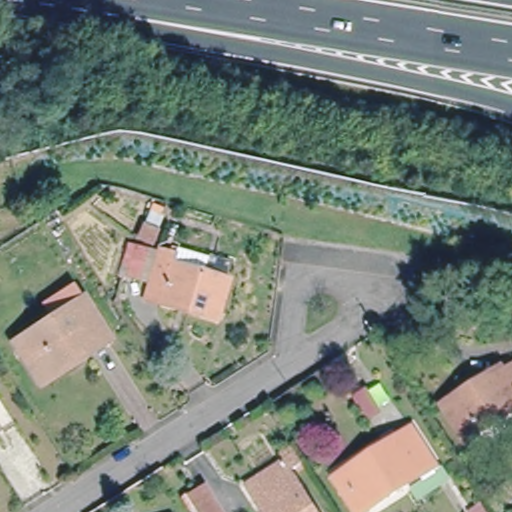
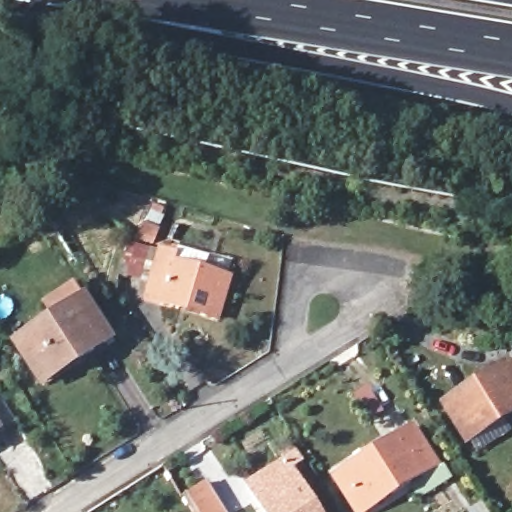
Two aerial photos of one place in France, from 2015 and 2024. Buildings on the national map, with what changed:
unchanged [(144,279),(155,243),(172,248),(170,260),(227,277),(215,316),(156,298),(140,294),(144,279)]
unchanged [(85,298),(105,335),(40,376),(15,335),(85,298)]
unchanged [(503,369),(512,364),(512,410),(470,436),(445,400),(500,365),(503,369)]
unchanged [(342,470),(409,428),(432,464),(365,509),(360,512),(357,512),(334,475),(342,470)]
unchanged [(286,459),(319,512),(267,512),(247,480),(286,459)]
unchanged [(225,512),(199,512),(192,499),(210,489),(225,512)]

